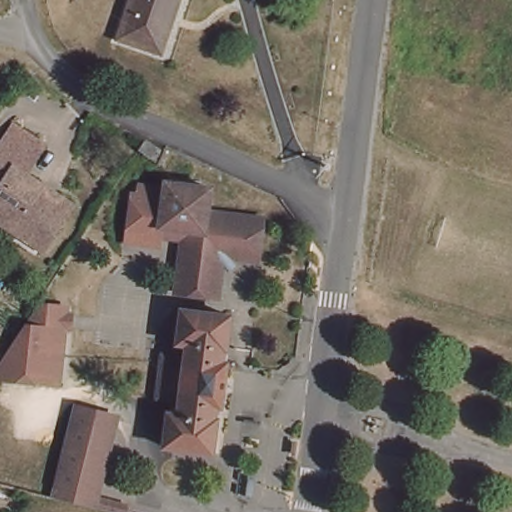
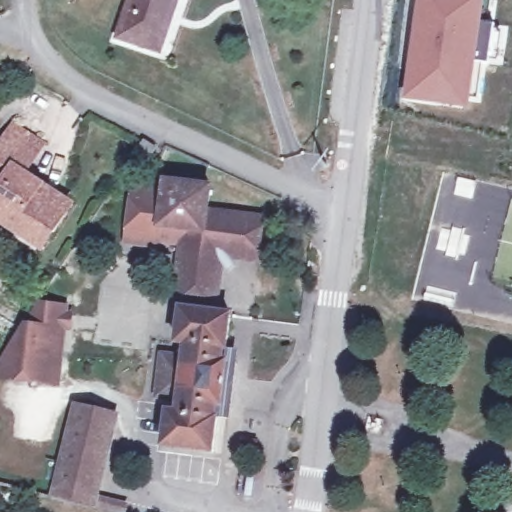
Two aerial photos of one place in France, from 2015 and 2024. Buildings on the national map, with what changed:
unchanged [(150,53),(117,41),(133,0),(181,0),(176,14),(160,58),(150,53)]
new [(483,24),(494,25),(489,63),(477,61),(471,108),(404,100),(418,0),(486,0),(483,24)]
unchanged [(0,226),(0,149),(1,148),(9,135),(40,155),(23,179),(68,208),(46,243),(40,253),(9,232),(0,226)]
unchanged [(129,152),(135,142),(149,150),(142,160),(129,152)]
unchanged [(163,223),(171,179),(212,186),(210,210),(266,219),(260,261),(233,256),(227,263),(222,254),(189,249),(190,237),(162,232),(163,223)]
unchanged [(163,250),(126,248),(134,186),(161,188),(159,235),(171,239),(163,250)]
unchanged [(222,254),(227,263),(222,296),(181,289),(189,249),(222,254)]
unchanged [(384,313),(373,309),(375,298),(387,303),(385,309),(384,313)]
unchanged [(0,381),(0,340),(12,339),(25,324),(29,304),(69,307),(61,385),(0,381)]
unchanged [(217,462),(209,460),(169,454),(173,419),(183,421),(185,408),(161,405),(167,361),(191,365),(192,351),(182,349),(187,316),(192,316),(236,322),(232,352),(224,415),(217,462)]
unchanged [(99,505),(57,494),(67,454),(81,403),(122,413),(108,469),(99,505)]

